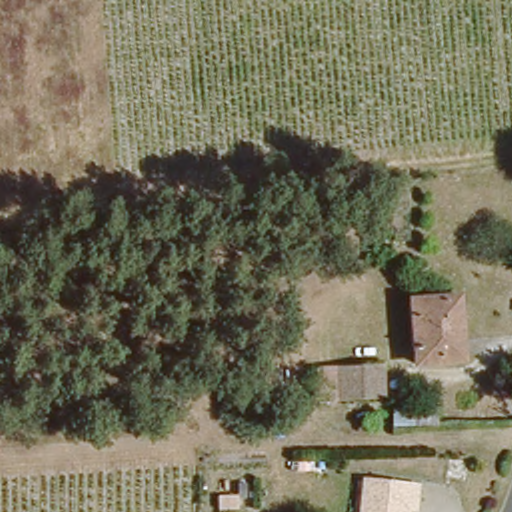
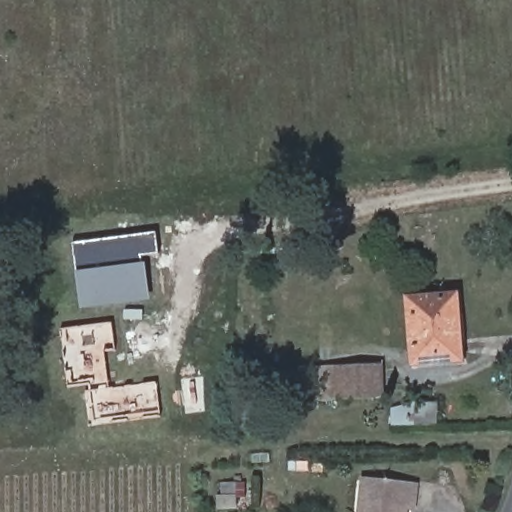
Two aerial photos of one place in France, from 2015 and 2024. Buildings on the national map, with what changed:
new [(80,309),(76,273),(72,244),(155,233),(158,255),(141,256),(141,264),(145,264),(151,300),(80,309)]
unchanged [(458,355),(413,358),(407,297),(452,293),(458,355)]
new [(104,350),(108,389),(156,382),(161,416),(90,426),(85,391),(90,390),(90,385),(68,387),(61,330),(112,323),(115,350),(104,350)]
unchanged [(376,393),(346,395),(344,362),(374,360),(376,393)]
unchanged [(406,423),(411,422),(419,421),(419,418),(427,418),(428,433),(421,434),(412,435),(407,435),(406,423)]
unchanged [(382,480),(383,498),(400,500),(399,512),(357,512),(358,477),(382,480)]

